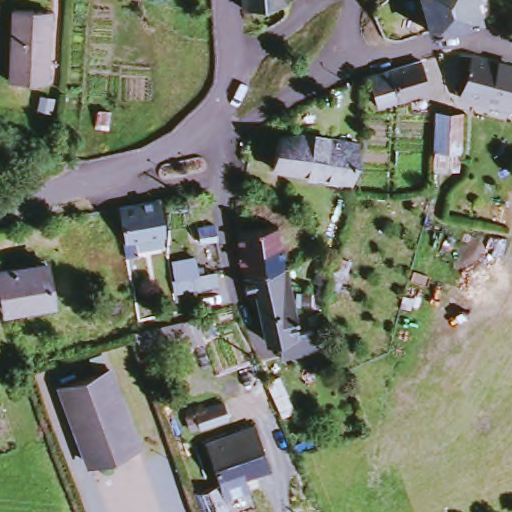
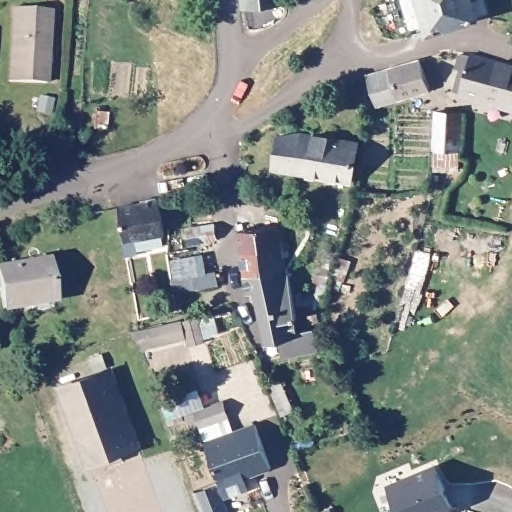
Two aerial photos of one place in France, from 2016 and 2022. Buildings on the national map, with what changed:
unchanged [(240,10),(239,0),(279,0),(279,3),(240,10)]
unchanged [(422,32),(412,0),(479,0),(483,15),(422,32)]
unchanged [(6,80),(13,7),(48,11),(43,84),(6,80)]
unchanged [(512,65),(512,108),(447,91),(454,64),(442,62),(444,49),(512,65)]
unchanged [(423,91),(375,101),(368,74),(415,61),(423,91)]
unchanged [(455,171),(429,171),(429,150),(428,111),(459,112),(455,171)]
unchanged [(352,182),(274,167),(282,136),(301,135),(359,145),(352,182)]
unchanged [(160,201),(165,234),(163,235),(164,247),(139,247),(139,253),(127,255),(118,206),(160,201)]
unchanged [(244,270),(241,250),(239,226),(279,219),(283,244),(286,267),(294,314),(260,319),(258,300),(247,300),(246,287),(244,270)]
unchanged [(173,261),(196,258),(197,275),(216,272),(218,287),(176,292),(173,261)]
unchanged [(58,303),(9,311),(3,272),(50,264),(58,303)]
unchanged [(294,314),(294,322),(288,322),(291,335),(309,332),(311,353),(278,357),(274,338),(263,340),(260,319),(294,314)]
unchanged [(106,467),(103,458),(86,464),(55,390),(103,370),(133,445),(117,452),(121,461),(106,467)]
unchanged [(220,478),(206,442),(254,422),(271,465),(254,473),(223,485),(220,478)]
new [(454,509),(447,512),(397,512),(386,484),(434,466),(454,509)]

